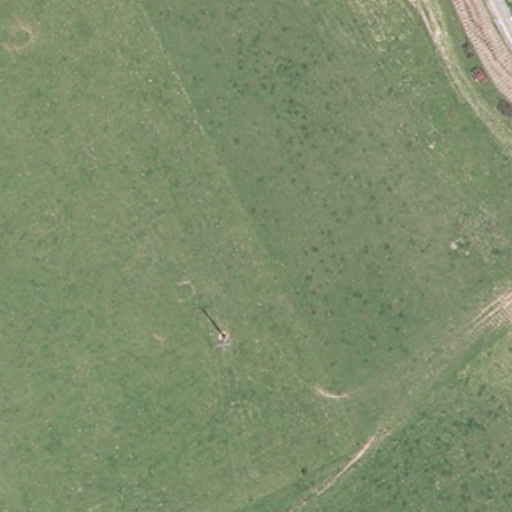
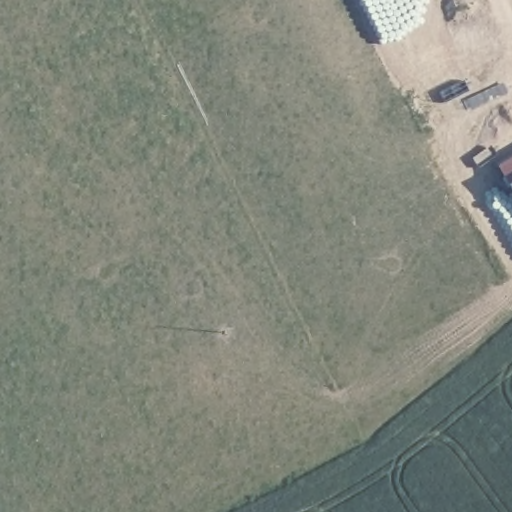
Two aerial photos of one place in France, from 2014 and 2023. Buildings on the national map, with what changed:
new [(498,167),(512,159),(512,190),(498,167)]

